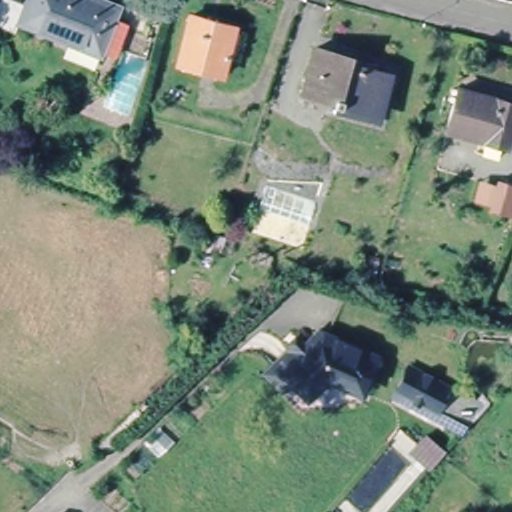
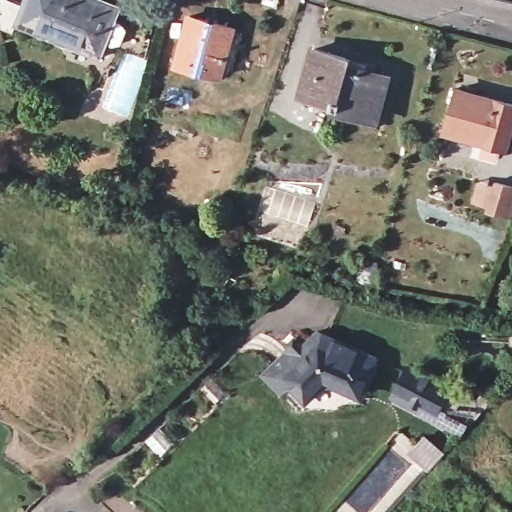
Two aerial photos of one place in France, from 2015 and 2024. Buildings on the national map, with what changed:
unchanged [(14,37),(0,32),(0,0),(3,0),(25,9),(29,0),(87,0),(84,6),(94,11),(97,4),(119,13),(114,25),(122,28),(127,35),(121,49),(113,50),(105,46),(100,61),(17,28),(14,37)]
unchanged [(233,27),(220,76),(176,64),(189,16),(233,27)]
unchanged [(366,116),(333,106),(328,105),(329,102),(301,95),(314,49),(351,59),(349,66),(385,76),(380,95),(373,118),(366,116)]
unchanged [(478,135),(445,126),(447,120),(457,84),(512,99),(512,120),(505,143),(501,141),(497,153),(474,146),(478,135)]
unchanged [(512,211),(489,203),(490,198),(474,193),(481,173),(497,179),(499,175),(512,179),(512,211)]
unchanged [(230,256),(216,250),(208,268),(198,264),(210,235),(234,244),(230,256)]
unchanged [(257,263),(260,253),(271,258),(267,267),(257,263)]
unchanged [(378,263),(371,283),(343,273),(350,254),(378,263)]
unchanged [(359,393),(357,396),(350,401),(342,404),(333,404),(325,403),(308,406),(292,389),(274,369),(297,346),(311,331),(317,337),(328,326),(386,352),(370,388),(367,397),(359,393)]
unchanged [(399,387),(413,362),(452,383),(439,408),(399,387)]
unchanged [(490,402),(470,424),(439,408),(452,383),(490,402)]
unchanged [(429,430),(449,447),(432,466),(412,449),(429,430)]

